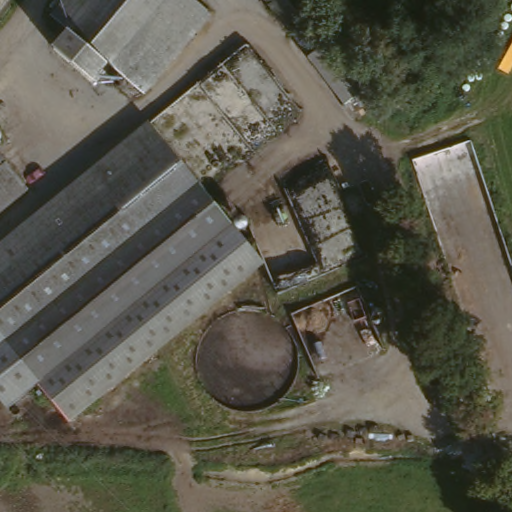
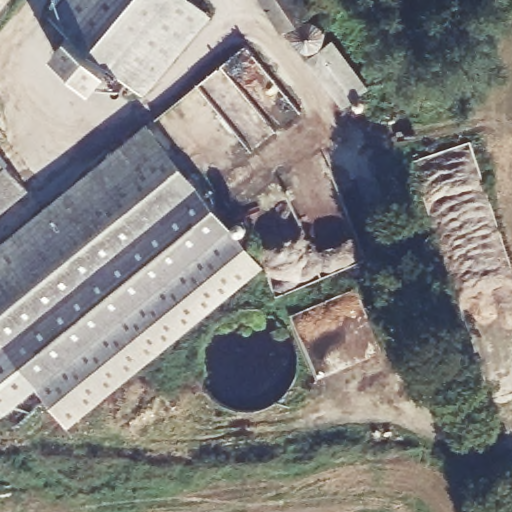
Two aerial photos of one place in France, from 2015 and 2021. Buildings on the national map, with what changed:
unchanged [(107,58),(69,24),(52,9),(61,0),(196,0),(209,12),(139,87),(107,58)]
unchanged [(267,0),(309,0),(315,8),(284,23),(267,0)]
unchanged [(107,58),(89,75),(53,42),(69,24),(107,58)]
unchanged [(74,424),(44,387),(0,333),(0,244),(153,119),(272,262),(74,424)]
unchanged [(0,209),(0,152),(29,185),(0,209)]
unchanged [(9,416),(0,406),(0,333),(44,387),(9,416)]

